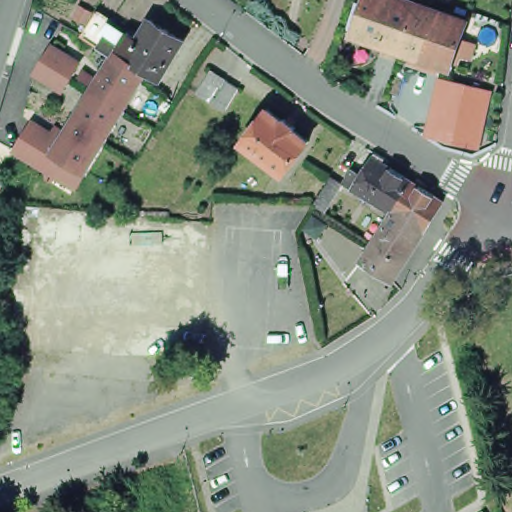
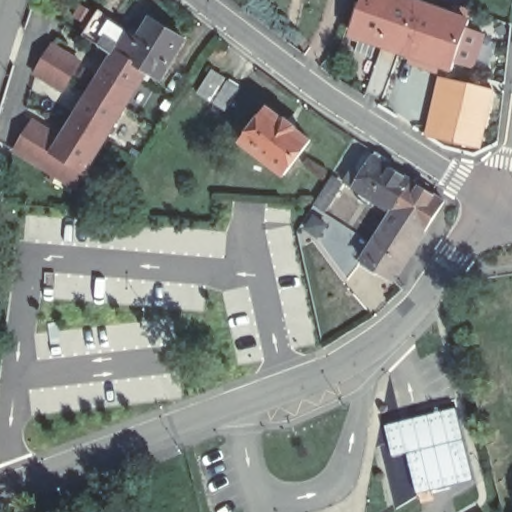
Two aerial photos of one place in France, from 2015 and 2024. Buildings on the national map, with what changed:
unchanged [(400,49),(353,32),(364,0),(413,0),(417,2),(400,49)]
unchanged [(420,64),(422,56),(400,49),(417,2),(467,19),(451,67),(434,61),(432,68),(420,64)]
unchanged [(85,170),(58,153),(55,151),(67,131),(74,120),(84,103),(92,90),(92,89),(105,70),(112,57),(115,53),(109,49),(97,43),(82,34),(89,25),(90,21),(98,9),(113,18),(107,29),(117,35),(122,25),(130,30),(140,36),(152,17),(186,38),(162,77),(150,70),(150,69),(148,68),(142,77),(124,108),(105,139),(85,170)]
unchanged [(67,89),(57,83),(40,73),(49,59),(57,45),(74,55),(84,61),(77,74),(67,89)]
unchanged [(220,77),(207,99),(195,91),(209,69),(220,77)]
unchanged [(235,86),(222,109),(210,102),(225,79),(235,86)]
unchanged [(435,111),(440,82),(492,93),(480,151),(455,145),(427,137),(435,111)]
unchanged [(264,107),(279,118),(282,117),(292,125),(292,128),(306,139),(279,172),(238,140),(264,107)]
unchanged [(55,151),(58,153),(50,166),(19,146),(35,120),(55,133),(59,126),(67,131),(55,151)]
unchanged [(414,180),(407,189),(394,210),(355,187),(346,181),(354,168),(362,173),(374,155),(414,180)]
unchanged [(393,278),(364,259),(394,210),(407,189),(414,180),(445,200),(447,201),(427,232),(396,279),(393,278)]
new [(456,406),(474,480),(417,495),(405,454),(392,457),(384,424),(456,406)]

